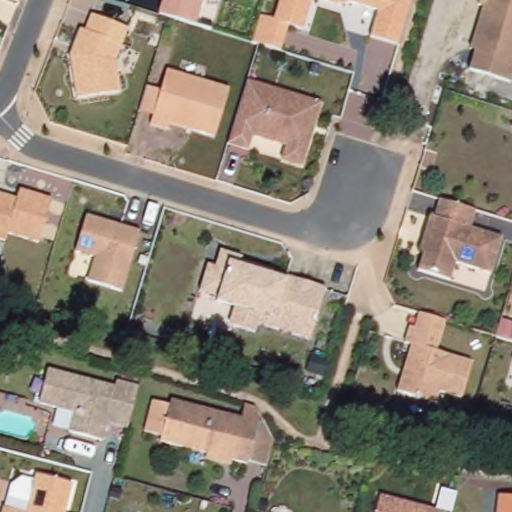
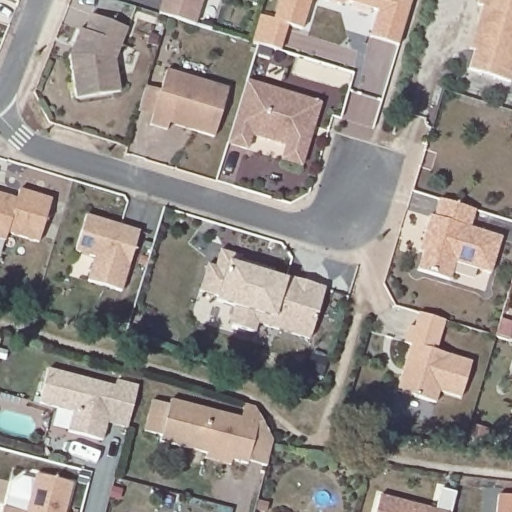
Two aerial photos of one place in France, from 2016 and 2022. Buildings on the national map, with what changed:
unchanged [(167,17),(160,14),(164,0),(203,0),(195,25),(167,17)]
unchanged [(292,27),(285,52),(254,42),(262,11),(275,15),(280,0),(315,0),(306,32),(292,27)]
unchanged [(369,37),(376,11),(336,0),(413,0),(398,45),(369,37)]
unchanged [(483,6),(478,4),(480,0),(512,0),(512,78),(511,82),(469,70),(475,50),(470,49),(478,23),(483,6)]
unchanged [(120,92),(77,98),(70,55),(80,29),(85,31),(92,14),(127,28),(115,60),(120,92)]
unchanged [(215,137),(192,130),(194,127),(170,120),(167,130),(151,125),(154,115),(139,111),(142,101),(147,86),(161,90),(167,70),(229,88),(215,137)]
unchanged [(282,159),(287,145),(252,134),(248,149),(228,143),(232,130),(247,80),(321,103),(307,151),(302,165),(282,159)]
unchanged [(20,189),(52,199),(39,242),(7,232),(5,240),(0,239),(0,194),(17,199),(20,189)]
unchanged [(425,236),(431,215),(435,217),(440,199),(476,210),(471,227),(502,237),(491,273),(456,262),(451,280),(418,270),(425,252),(421,250),(425,236)]
unchanged [(87,280),(94,256),(74,250),(85,214),(140,231),(121,291),(87,280)]
unchanged [(246,257),(245,260),(252,262),(278,270),(277,275),(292,280),(292,277),(330,288),(315,339),(263,323),(260,332),(234,324),(240,306),(239,306),(222,301),(223,296),(205,291),(213,265),(221,267),(226,250),(246,257)]
unchanged [(451,321),(442,351),(477,362),(467,397),(445,391),(442,403),(403,391),(417,345),(411,343),(416,326),(421,328),(425,313),(451,321)]
unchanged [(48,370),(115,387),(117,381),(138,386),(132,409),(127,426),(107,421),(102,441),(69,432),(74,412),(40,403),(48,370)]
unchanged [(166,441),(167,435),(150,431),(157,400),(175,405),(176,400),(246,418),(250,403),(259,406),(261,406),(276,437),(278,441),(272,466),(254,462),(254,464),(236,459),(235,465),(211,459),(212,453),(166,441)]
unchanged [(8,503),(31,509),(42,470),(77,479),(69,510),(75,512),(6,512),(8,503)]
unchanged [(443,512),(368,512),(373,493),(443,512)]
unchanged [(499,495),(512,496),(512,512),(497,512),(499,495)]

